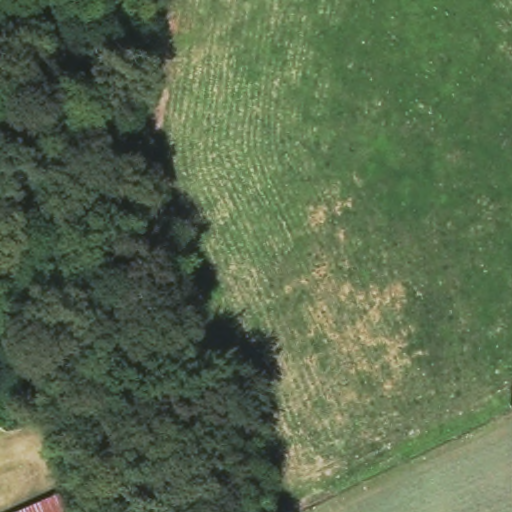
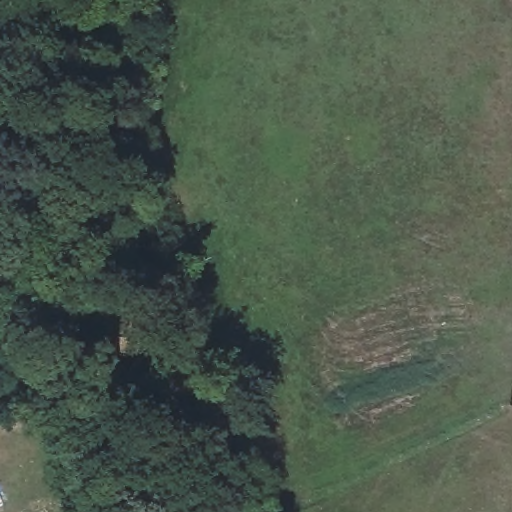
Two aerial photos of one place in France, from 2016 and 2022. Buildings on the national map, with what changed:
unchanged [(18,512),(7,512),(16,508),(18,512)]

